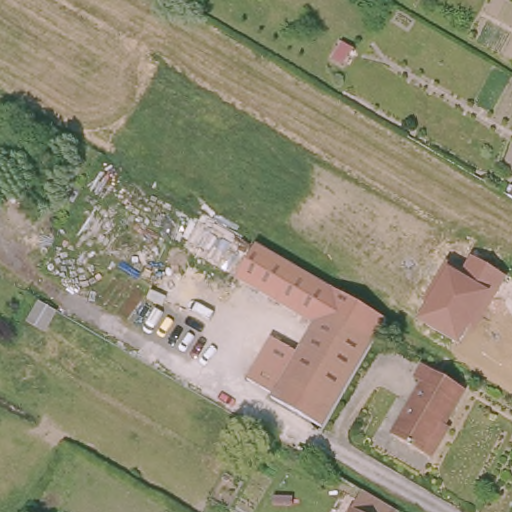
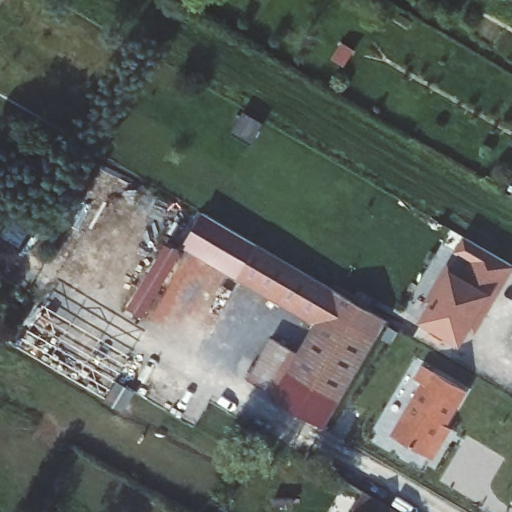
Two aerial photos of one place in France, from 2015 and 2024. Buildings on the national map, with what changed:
unchanged [(506,198),(512,189),(512,202),(506,198)]
new [(257,243),(239,278),(184,245),(202,211),(257,243)]
unchanged [(272,338),(297,351),(314,324),(237,279),(257,243),(389,318),(325,428),(271,396),(247,380),(272,338)]
unchanged [(428,306),(425,301),(447,262),(449,268),(461,276),(462,274),(471,257),(506,278),(478,335),(470,330),(460,347),(420,323),(428,306)]
unchanged [(460,382),(437,425),(442,429),(432,450),(391,428),(416,378),(410,375),(418,360),(460,382)]
unchanged [(397,512),(350,512),(362,491),(397,510),(397,512)]

